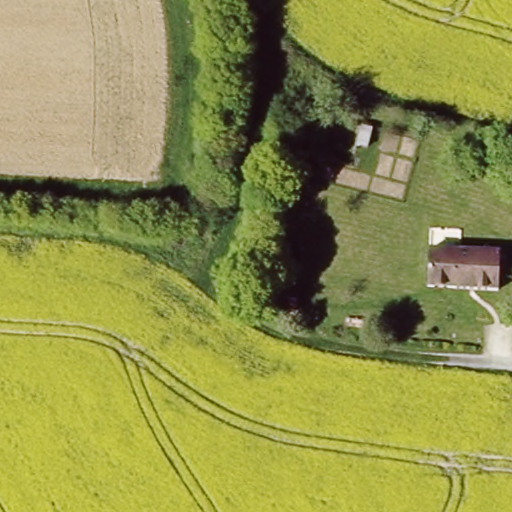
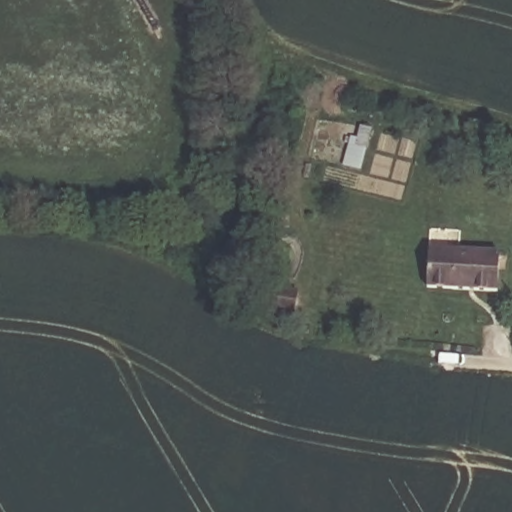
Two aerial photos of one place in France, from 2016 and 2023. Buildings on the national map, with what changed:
unchanged [(430,247),(439,247),(500,248),(500,287),(435,286),(430,286),(430,247)]
unchanged [(322,317),(297,313),(300,293),(325,297),(322,317)]

